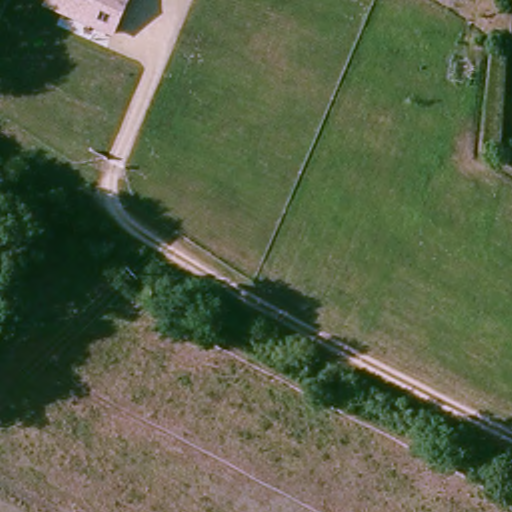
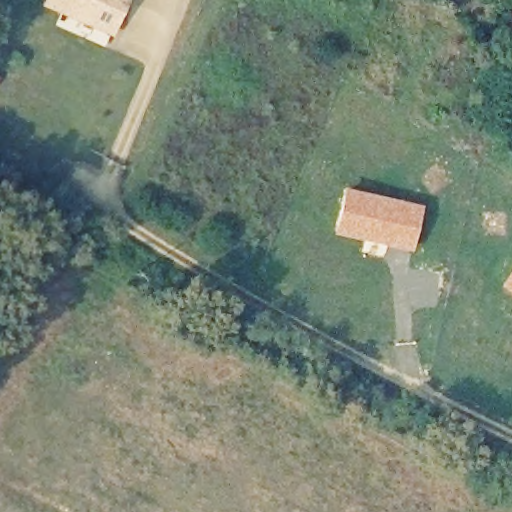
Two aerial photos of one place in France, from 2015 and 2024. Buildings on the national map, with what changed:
unchanged [(112,37),(42,7),(45,0),(129,0),(112,37)]
new [(343,186),(422,204),(411,252),(332,234),(343,186)]
new [(512,268),(512,294),(499,286),(512,268)]

